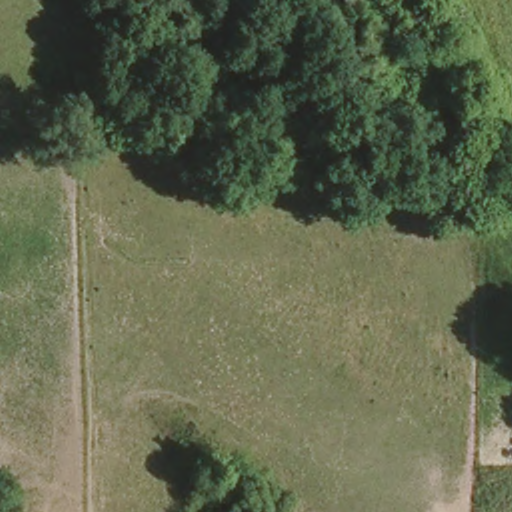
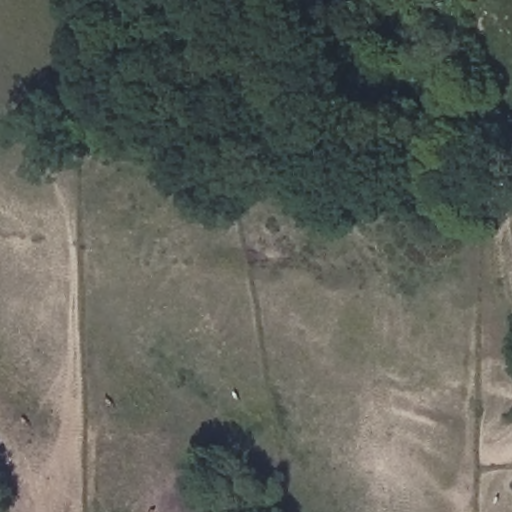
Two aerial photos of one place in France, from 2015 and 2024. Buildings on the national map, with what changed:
[]

